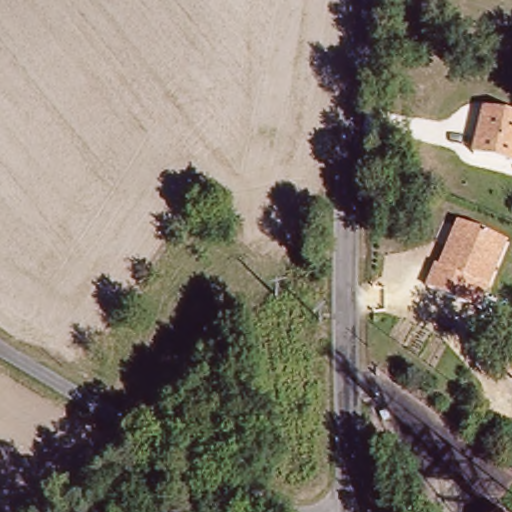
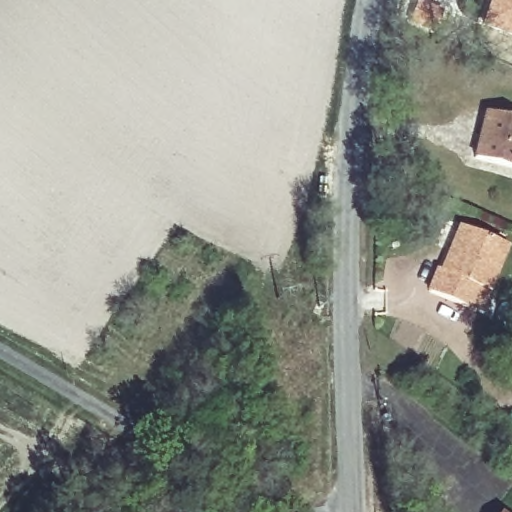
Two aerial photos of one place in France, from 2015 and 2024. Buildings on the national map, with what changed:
new [(482,26),(490,0),(512,0),(512,35),(482,26)]
unchanged [(475,154),(487,108),(512,114),(512,163),(475,154)]
unchanged [(468,307),(430,291),(438,270),(443,272),(452,251),(461,227),(507,246),(488,291),(480,312),(468,307)]

